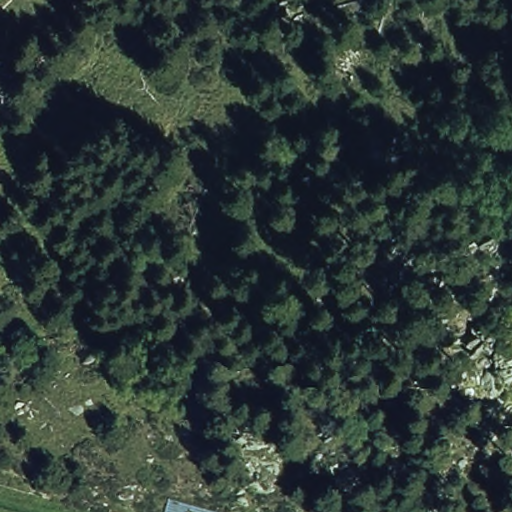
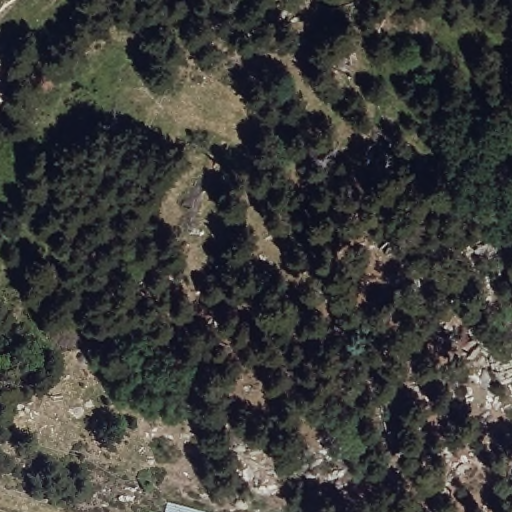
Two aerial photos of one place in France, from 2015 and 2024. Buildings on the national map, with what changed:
unchanged [(169,500),(217,512),(166,512),(169,500)]

